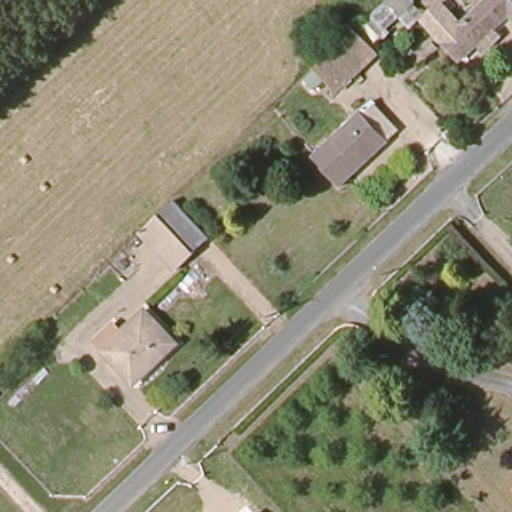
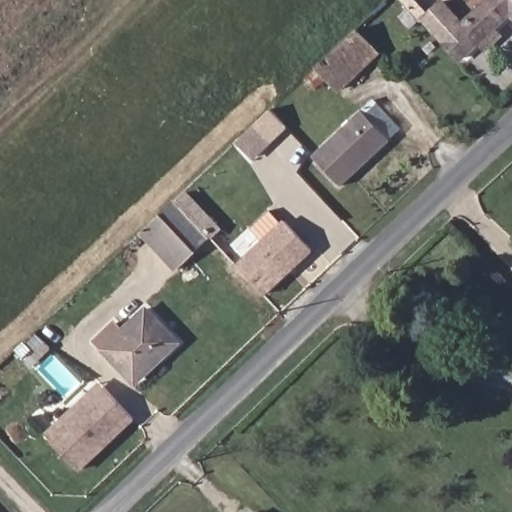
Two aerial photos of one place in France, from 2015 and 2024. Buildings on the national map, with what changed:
unchanged [(498,29),(505,37),(485,55),(477,47),(460,61),(422,21),(411,30),(401,20),(391,27),(395,32),(378,47),(358,27),(388,0),(418,0),(420,1),(416,5),(425,15),(442,1),(463,20),(486,0),(512,0),(512,20),(509,18),(498,29)]
unchanged [(339,92),(317,64),(358,27),(378,47),(383,54),(339,92)]
unchanged [(318,149),(355,115),(366,102),(395,134),(383,145),(347,177),(318,149)]
unchanged [(161,212),(175,200),(211,238),(197,251),(161,212)]
unchanged [(161,212),(197,251),(178,268),(140,232),(161,212)]
new [(265,296),(236,265),(285,220),(314,250),(265,296)]
unchanged [(104,350),(143,308),(180,342),(164,358),(160,355),(132,378),(104,350)]
new [(80,471),(45,432),(99,381),(135,420),(80,471)]

